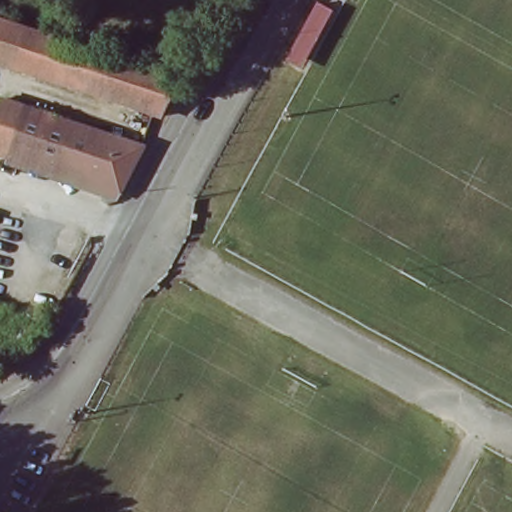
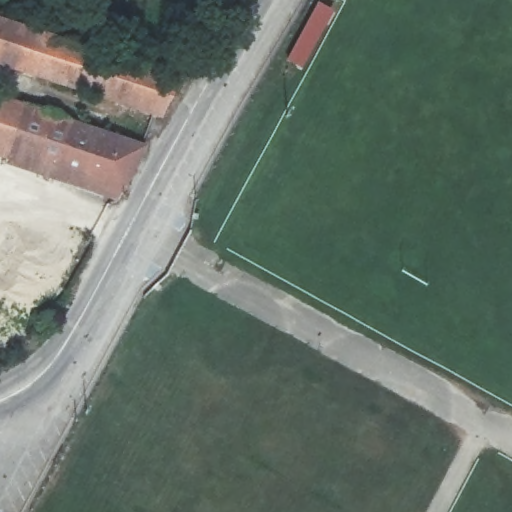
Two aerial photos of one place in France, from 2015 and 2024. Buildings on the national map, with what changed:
unchanged [(160,120),(0,67),(0,25),(180,85),(160,120)]
unchanged [(115,198),(0,156),(0,101),(2,96),(143,146),(115,198)]

